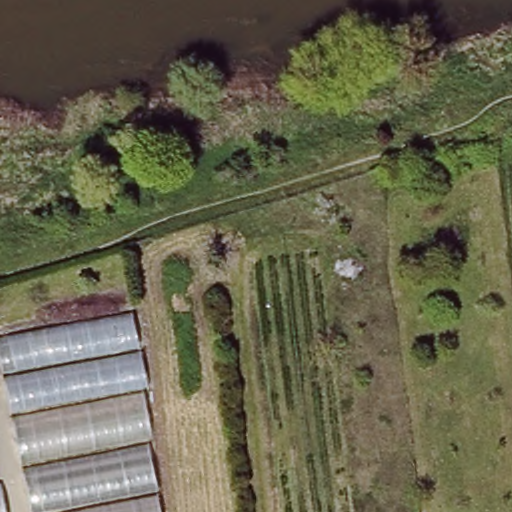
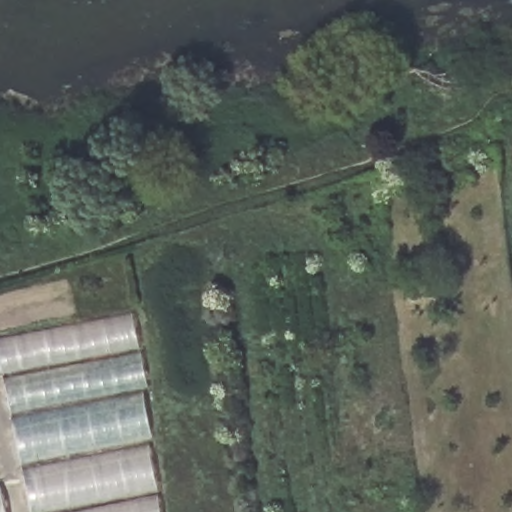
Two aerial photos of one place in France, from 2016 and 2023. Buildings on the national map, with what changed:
unchanged [(128,320),(152,446),(145,447),(156,512),(32,512),(0,355),(0,347),(128,320)]

